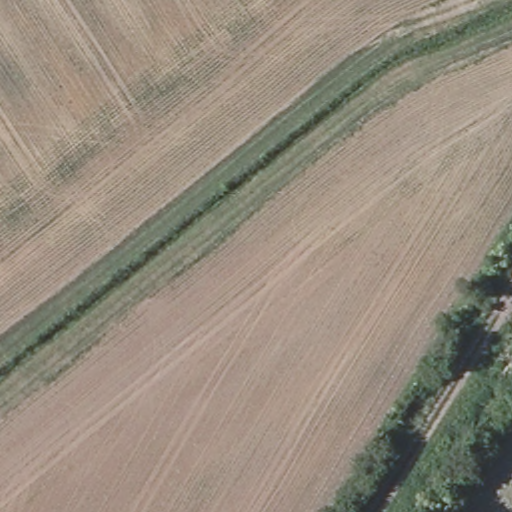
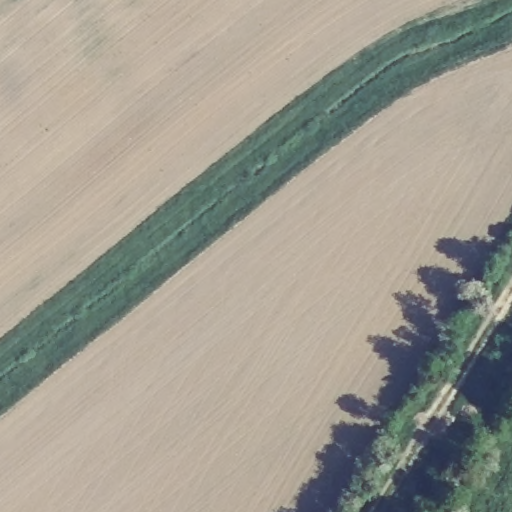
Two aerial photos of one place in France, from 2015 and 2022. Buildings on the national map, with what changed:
unchanged [(447,28),(415,0),(454,0),(461,6),(447,28)]

